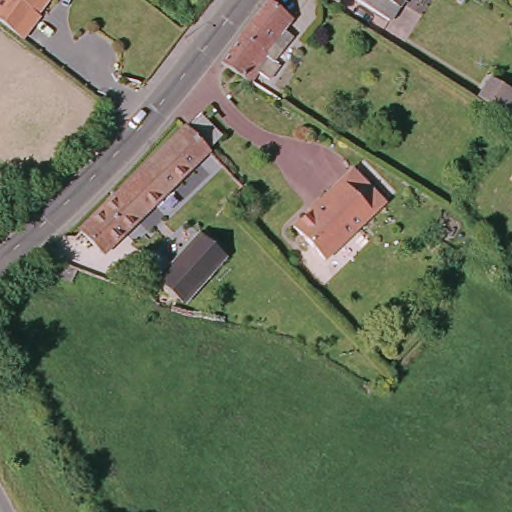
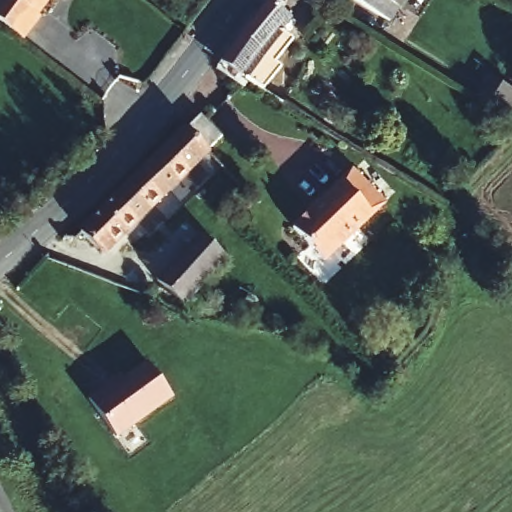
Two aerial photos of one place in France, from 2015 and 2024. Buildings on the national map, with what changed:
unchanged [(44,0),(33,15),(40,20),(22,42),(0,27),(0,0),(44,0)]
unchanged [(224,70),(218,66),(213,61),(261,0),(271,0),(288,14),(293,19),(287,26),(282,23),(261,49),(269,54),(249,79),(243,85),(224,70)]
unchanged [(351,0),(403,0),(387,24),(351,0)]
unchanged [(205,108),(228,133),(205,155),(181,130),(205,108)]
unchanged [(205,155),(93,260),(88,255),(82,261),(62,242),(103,200),(181,130),(205,155)]
unchanged [(384,204),(323,262),(290,226),(353,170),(384,204)]
unchanged [(226,255),(176,303),(152,279),(201,231),(226,255)]
new [(169,405),(111,442),(85,402),(98,393),(101,398),(147,369),(169,405)]
new [(119,381),(122,385),(101,398),(98,393),(119,381)]

